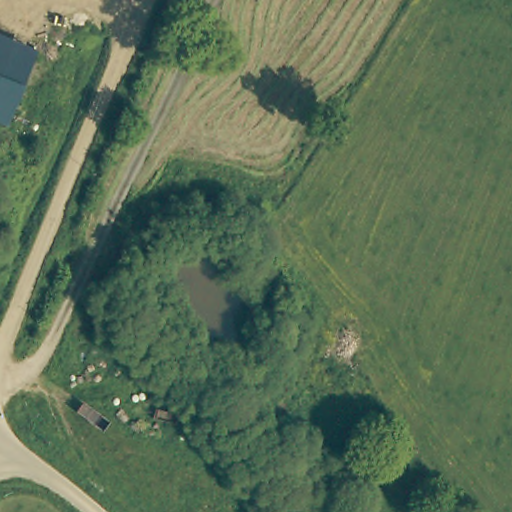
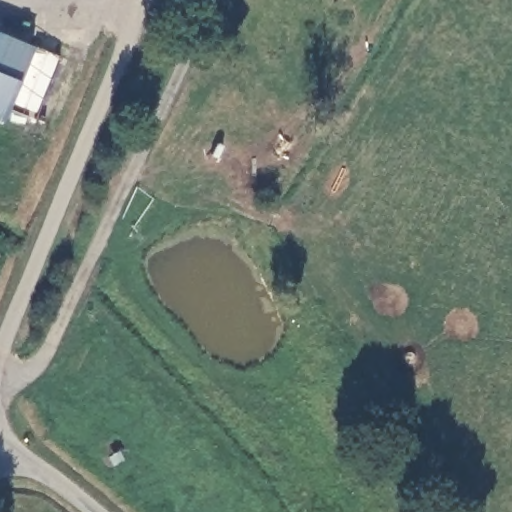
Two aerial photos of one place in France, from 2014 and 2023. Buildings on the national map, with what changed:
unchanged [(6,124),(0,122),(0,36),(35,50),(6,124)]

